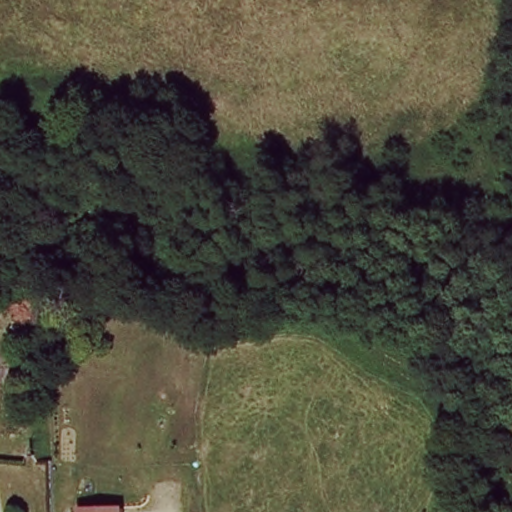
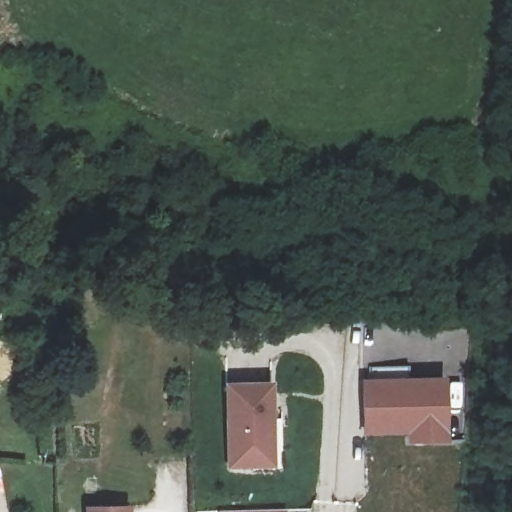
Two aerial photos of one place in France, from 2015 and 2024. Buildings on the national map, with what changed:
new [(447,442),(406,443),(406,433),(361,434),(360,380),(445,377),(447,442)]
new [(274,466),(226,467),(225,383),(271,382),(274,466)]
unchanged [(137,507),(138,512),(88,512),(88,509),(137,507)]
new [(286,512),(218,512),(286,510),(286,512)]

